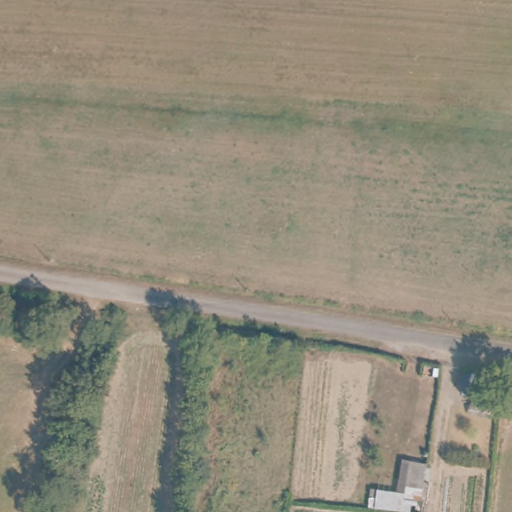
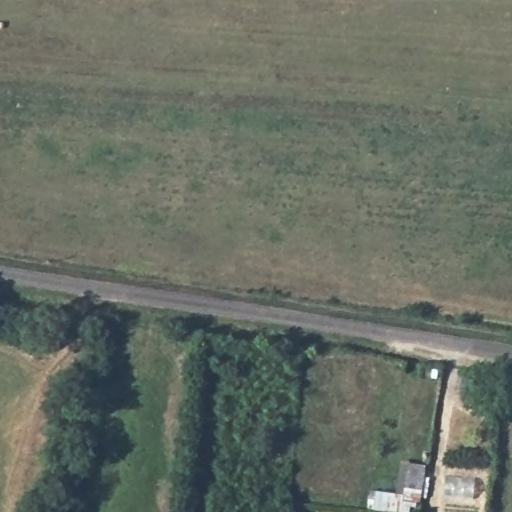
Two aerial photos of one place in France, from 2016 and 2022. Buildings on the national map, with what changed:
unchanged [(406,501),(410,468),(426,470),(420,506),(417,506),(417,512),(410,512),(375,512),(376,497),(406,501)]

